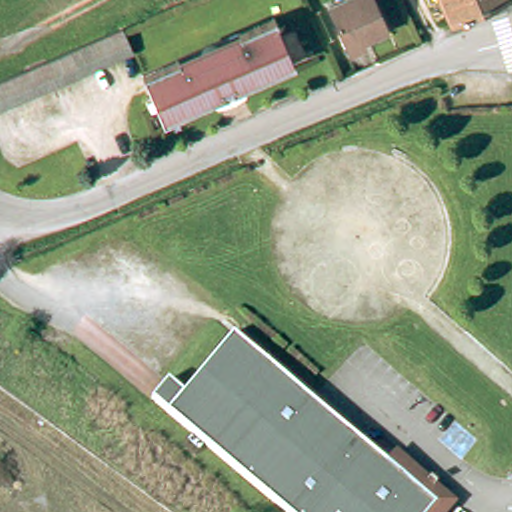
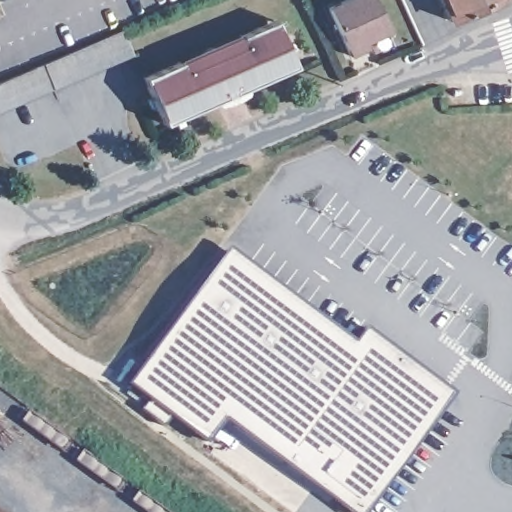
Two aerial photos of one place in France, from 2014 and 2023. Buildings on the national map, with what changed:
unchanged [(367,45),(370,51),(354,59),(332,11),(358,0),(377,0),(393,35),(367,45)]
unchanged [(438,0),(502,0),(449,24),(438,0)]
unchanged [(201,69),(200,65),(201,61),(203,57),(207,55),(211,55),(215,55),(218,58),(220,61),(242,52),(238,42),(274,28),(278,37),(289,62),(295,75),(241,97),(230,94),(220,98),(216,107),(162,131),(146,95),(141,85),(178,70),(182,79),(202,70),(201,69)]
unchanged [(117,32),(128,58),(0,112),(0,82),(117,32)]
new [(208,438),(206,440),(171,413),(162,425),(140,408),(148,397),(127,381),(225,249),(351,343),(364,325),(416,364),(403,382),(428,400),(367,482),(379,492),(364,512),(353,512),(214,408),(224,416),(208,438)]
demolished [(153,402),(169,383),(184,396),(235,336),(353,436),(387,466),(393,470),(437,508),(434,512),(282,512),(153,402)]
new [(367,482),(428,400),(403,382),(416,364),(454,391),(379,492),(367,482)]

